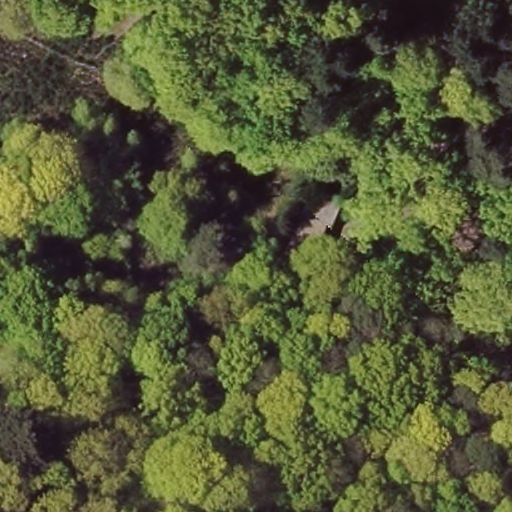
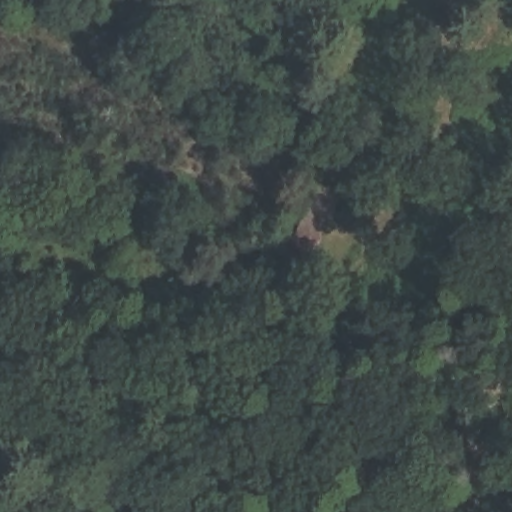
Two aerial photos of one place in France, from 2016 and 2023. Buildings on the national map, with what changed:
unchanged [(314,188),(342,198),(306,289),(278,278),(314,188)]

